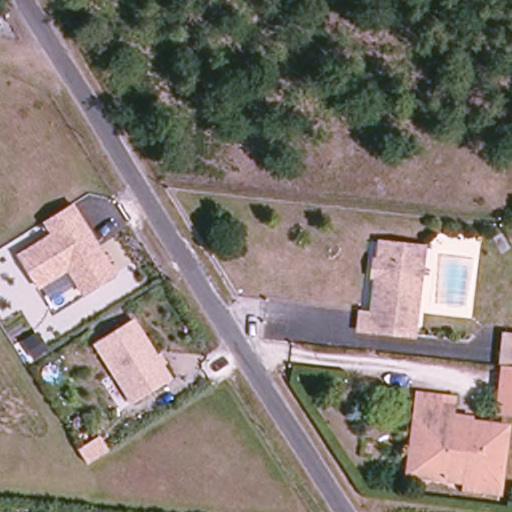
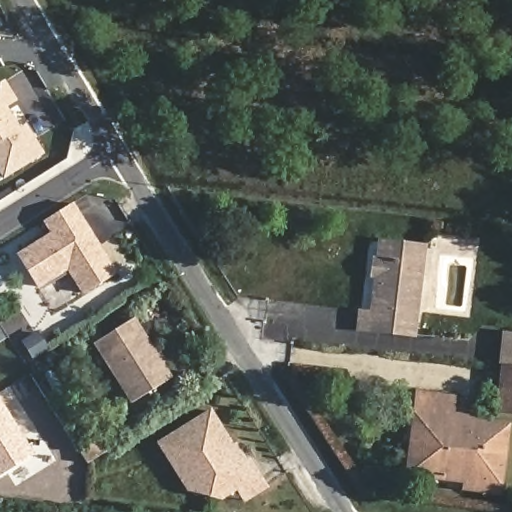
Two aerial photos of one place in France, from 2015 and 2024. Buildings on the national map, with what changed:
new [(0,84),(11,101),(0,108),(0,84)]
new [(1,118),(7,120),(15,132),(21,128),(38,155),(0,179),(0,178),(0,117),(1,118)]
unchanged [(82,295),(68,271),(37,290),(14,254),(48,234),(42,224),(74,205),(117,274),(82,295)]
unchanged [(361,329),(363,312),(372,312),(377,275),(374,275),(377,253),(379,253),(380,238),(424,243),(423,258),(412,334),(361,329)]
unchanged [(129,404),(93,345),(134,319),(170,378),(129,404)]
unchanged [(505,360),(507,361),(512,333),(512,408),(499,407),(505,360)]
unchanged [(468,493),(470,482),(420,476),(411,475),(415,438),(419,397),(450,400),(451,419),(506,426),(500,485),(499,496),(468,493)]
new [(0,474),(0,401),(33,454),(0,474)]
new [(268,488),(242,504),(235,492),(221,501),(186,493),(154,442),(211,409),(243,462),(249,457),(268,488)]

